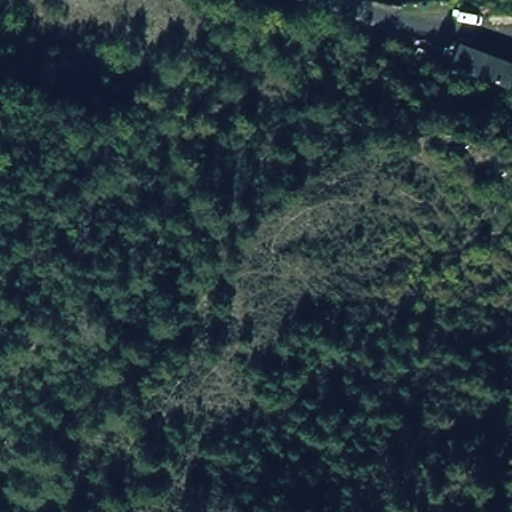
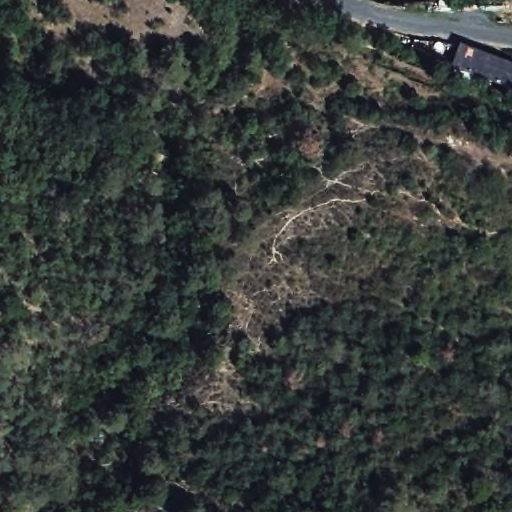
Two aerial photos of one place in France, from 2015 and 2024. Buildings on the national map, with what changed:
unchanged [(512,86),(511,88),(450,65),(462,39),(512,58),(512,86)]

